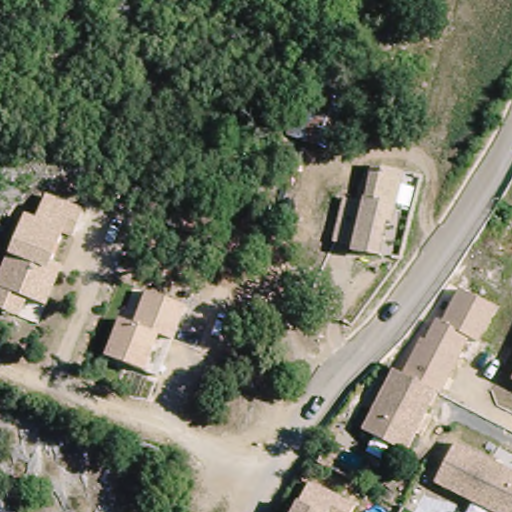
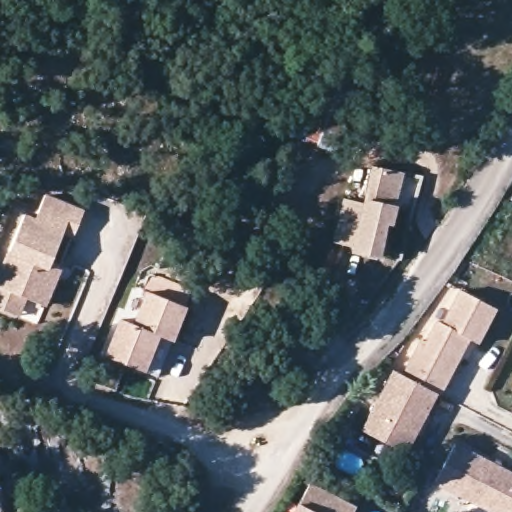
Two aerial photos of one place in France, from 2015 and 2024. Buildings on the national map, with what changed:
unchanged [(325,65),(364,79),(337,148),(300,134),(325,65)]
unchanged [(403,174),(386,263),(331,247),(344,206),(362,206),(369,164),(403,174)]
unchanged [(29,299),(21,318),(0,309),(0,268),(7,252),(9,253),(25,212),(37,217),(47,193),(84,208),(73,238),(63,234),(51,262),(63,267),(47,305),(29,299)]
unchanged [(145,371),(105,356),(120,318),(134,323),(147,290),(188,304),(174,340),(158,376),(145,371)]
unchanged [(441,395),(439,394),(405,377),(422,342),(426,344),(437,323),(443,325),(459,290),(494,308),(477,343),(468,339),(460,356),(441,395)]
unchanged [(408,454),(364,432),(395,371),(405,377),(439,394),(427,419),(419,434),(408,454)]
unchanged [(512,474),(512,512),(501,512),(436,478),(454,443),(512,474)]
unchanged [(307,480),(312,483),(358,506),(354,512),(291,512),(307,480)]

